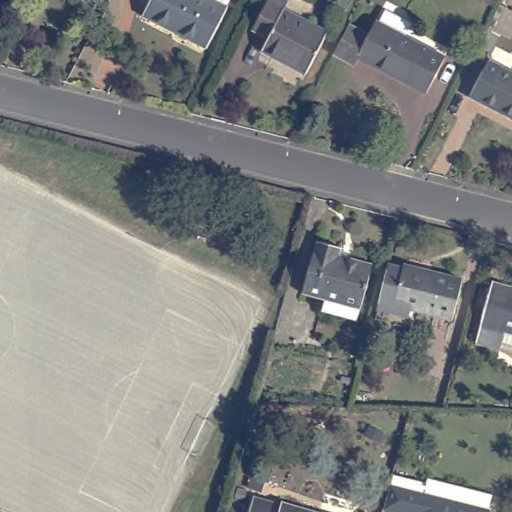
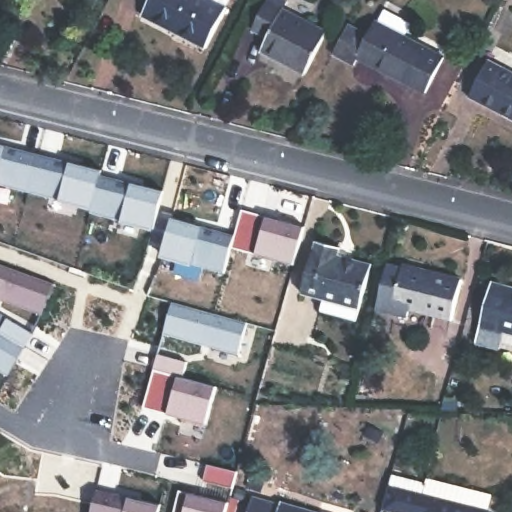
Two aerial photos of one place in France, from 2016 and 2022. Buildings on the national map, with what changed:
unchanged [(150,16),(159,0),(238,0),(233,9),(212,49),(150,16)]
unchanged [(271,0),(282,0),(289,4),(286,10),(330,35),(307,77),(263,54),(270,40),(255,31),(271,0)]
unchanged [(373,39),(379,26),(383,28),(390,14),(415,26),(408,41),(447,61),(429,96),(362,61),(358,70),(336,59),(352,28),(373,39)]
unchanged [(512,70),(512,118),(470,96),(490,59),(512,70)]
new [(102,170),(101,175),(164,191),(154,229),(91,213),(92,209),(0,185),(0,144),(102,170)]
new [(173,218),(235,235),(243,210),(304,227),(294,265),(232,248),(225,273),(162,256),(173,218)]
unchanged [(323,243),(346,249),(344,256),(378,267),(362,323),(326,315),(329,302),(308,295),(323,243)]
new [(53,283),(42,315),(0,300),(0,264),(53,283)]
unchanged [(390,266),(404,270),(405,267),(462,281),(451,321),(412,311),(411,318),(378,310),(390,266)]
unchanged [(512,282),(512,329),(510,328),(505,345),(482,340),(497,278),(512,282)]
new [(164,335),(173,302),(247,322),(238,355),(164,335)]
new [(0,371),(0,331),(7,318),(33,333),(8,376),(0,371)]
new [(187,362),(183,377),(154,370),(158,354),(187,362)]
new [(154,370),(217,387),(206,425),(144,407),(154,370)]
new [(208,465),(237,471),(233,488),(204,481),(208,465)]
unchanged [(432,485),(429,496),(488,512),(401,512),(387,508),(396,475),(432,485)]
unchanged [(432,485),(433,479),(498,497),(494,512),(488,512),(429,496),(432,485)]
new [(161,505),(159,512),(92,512),(97,490),(161,505)]
new [(229,502),(227,512),(175,512),(180,490),(229,502)]
unchanged [(280,505),(281,503),(313,512),(249,512),(253,497),(280,505)]

